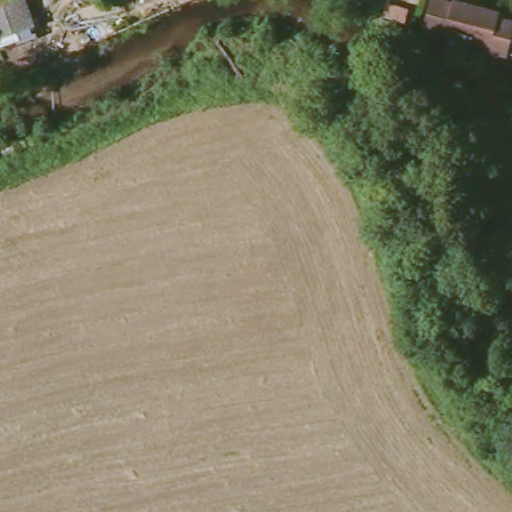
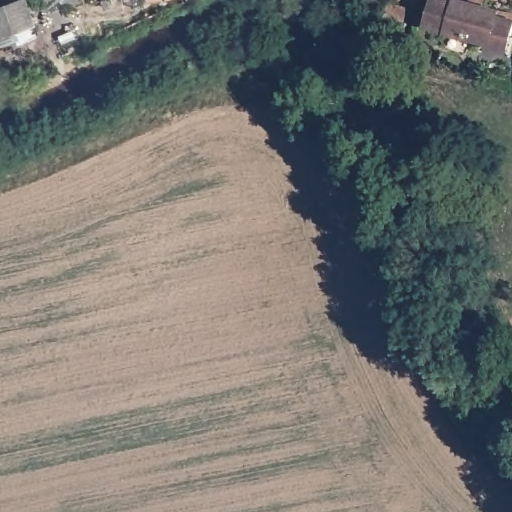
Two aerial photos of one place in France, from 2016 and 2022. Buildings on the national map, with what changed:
unchanged [(16,0),(25,21),(0,31),(0,1),(1,0),(16,0)]
unchanged [(493,17),(508,23),(501,54),(486,48),(487,44),(423,26),(430,0),(442,0),(450,2),(450,0),(465,0),(497,7),(493,17)]

